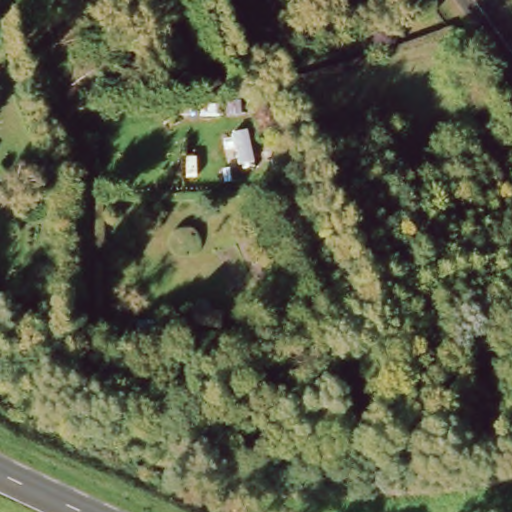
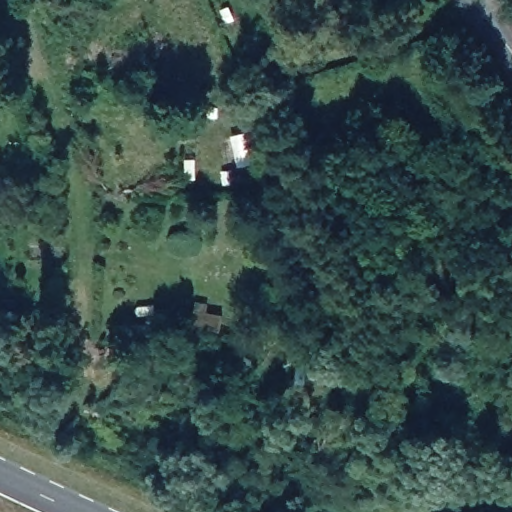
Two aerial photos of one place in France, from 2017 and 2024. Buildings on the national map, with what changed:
unchanged [(109,324),(123,331),(117,343),(102,335),(109,324)]

